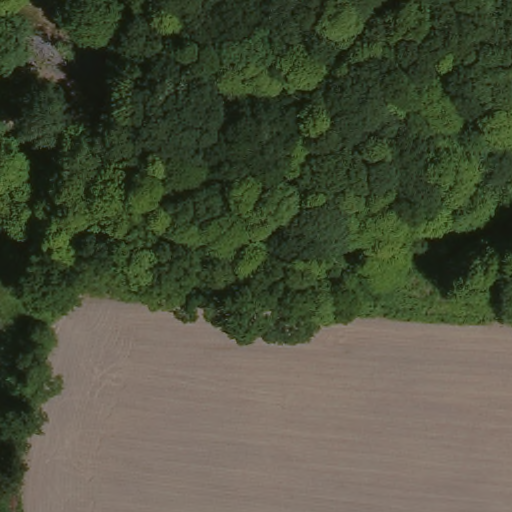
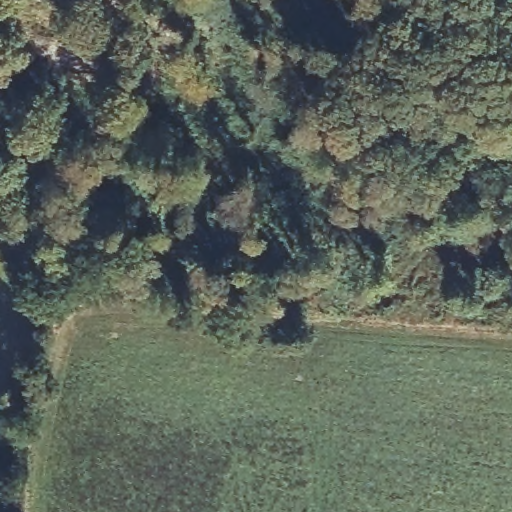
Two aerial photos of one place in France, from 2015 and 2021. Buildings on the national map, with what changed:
unchanged [(2,0),(20,0),(2,2),(2,0)]

